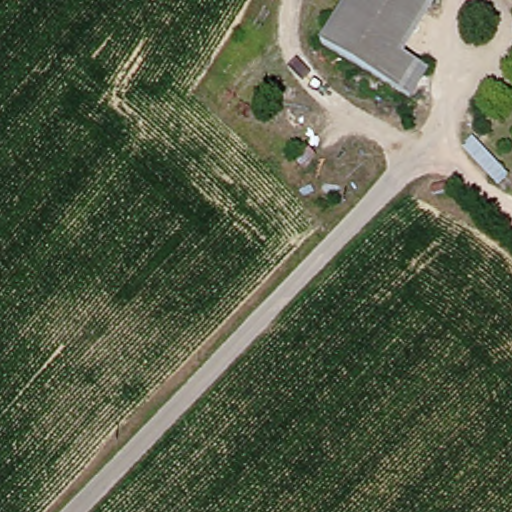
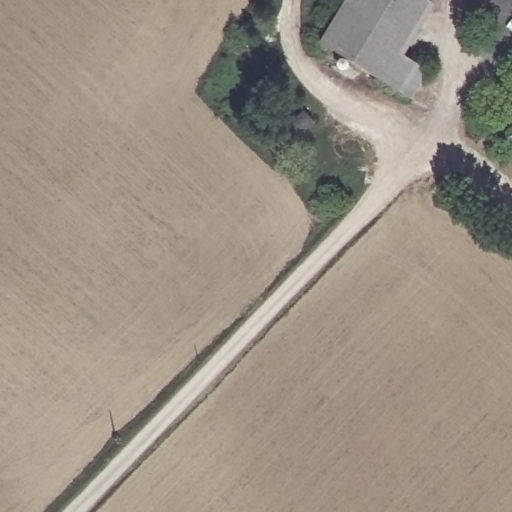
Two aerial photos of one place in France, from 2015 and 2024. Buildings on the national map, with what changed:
unchanged [(394,56),(419,73),(402,101),(314,42),(340,0),(419,0),(425,5),(394,56)]

